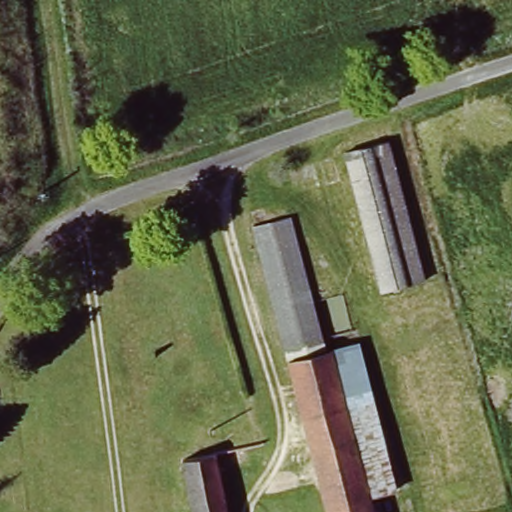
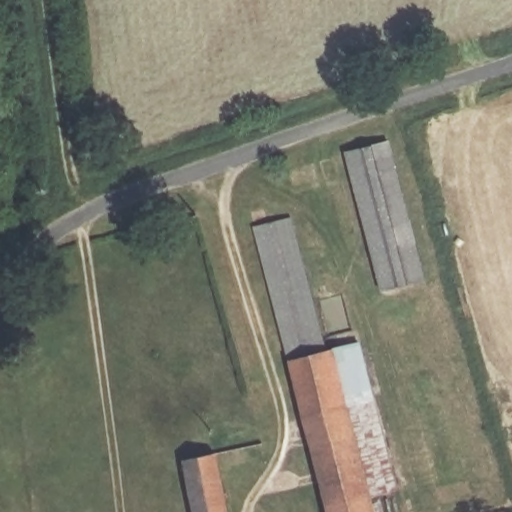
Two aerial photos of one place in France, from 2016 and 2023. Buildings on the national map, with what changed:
unchanged [(387,148),(425,283),(381,295),(345,160),(387,148)]
unchanged [(250,231),(291,223),(327,356),(359,349),(400,495),(372,504),(374,512),(322,512),(250,231)]
unchanged [(265,467),(219,476),(226,512),(191,512),(182,467),(259,450),(265,467)]

